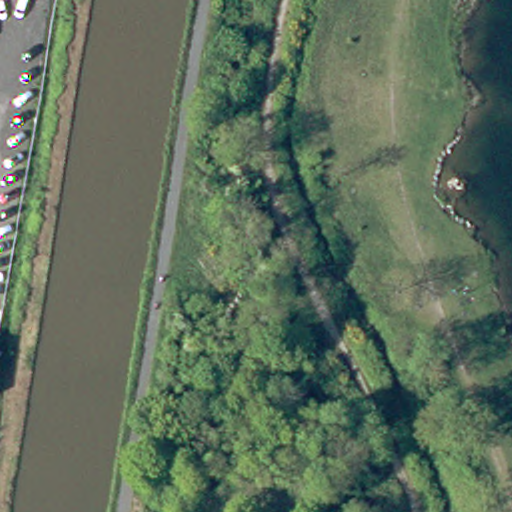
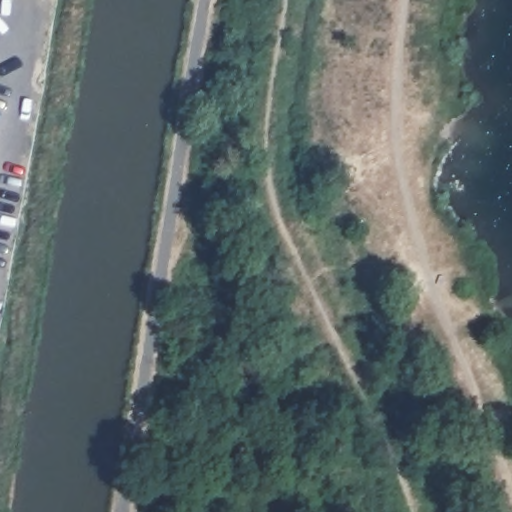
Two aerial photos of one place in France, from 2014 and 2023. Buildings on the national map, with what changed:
unchanged [(45,26),(26,24),(29,7),(47,10),(45,26)]

